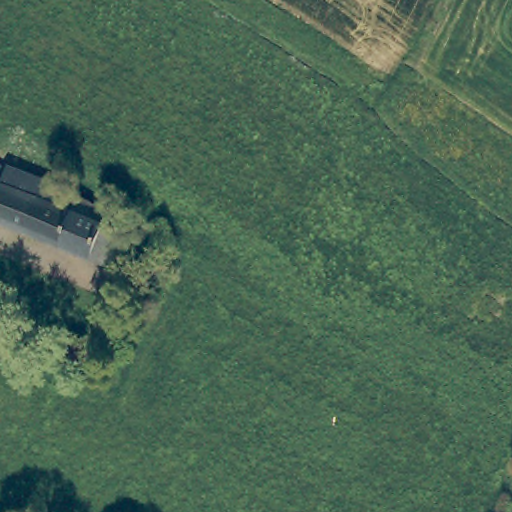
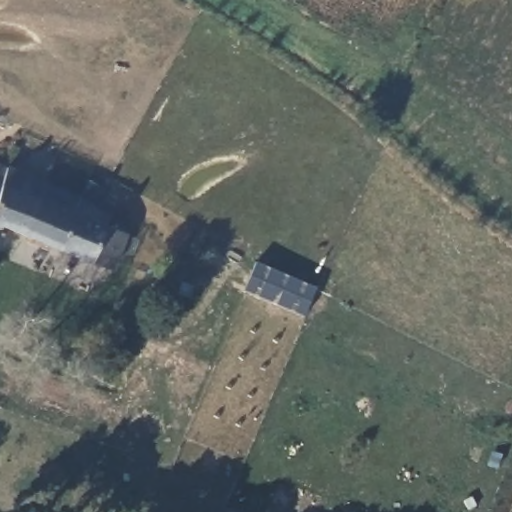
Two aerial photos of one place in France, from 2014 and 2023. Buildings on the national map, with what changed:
unchanged [(122,228),(106,266),(0,226),(0,170),(7,173),(9,168),(61,187),(59,191),(88,201),(86,206),(107,214),(104,221),(122,228)]
new [(264,258),(322,288),(305,319),(248,289),(264,258)]

